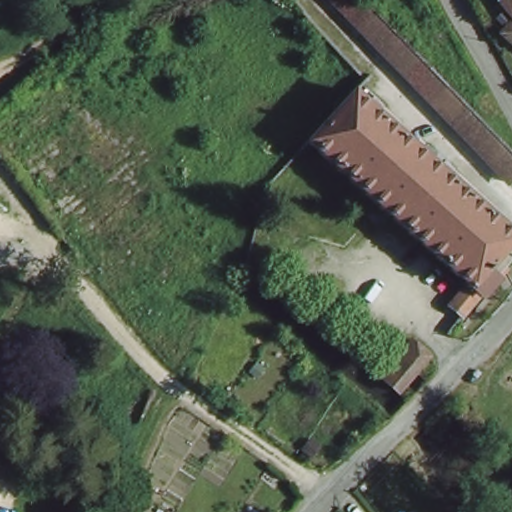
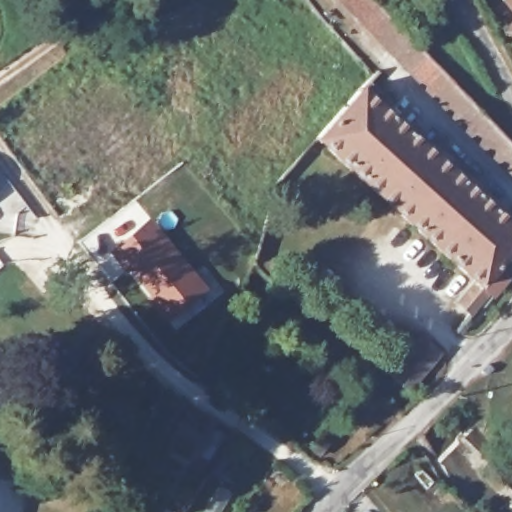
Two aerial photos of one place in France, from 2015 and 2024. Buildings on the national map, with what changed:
unchanged [(512,173),(510,175),(345,0),(370,0),(512,153),(512,173)]
unchanged [(506,0),(512,0),(512,13),(504,2),(506,0)]
unchanged [(512,28),(512,36),(508,31),(512,28)]
unchanged [(512,250),(480,286),(490,296),(459,334),(444,321),(475,282),(318,139),(364,88),(512,224),(512,250)]
new [(208,288),(167,321),(110,251),(151,218),(208,288)]
unchanged [(436,353),(422,370),(412,381),(404,390),(390,378),(423,340),(436,353)]

